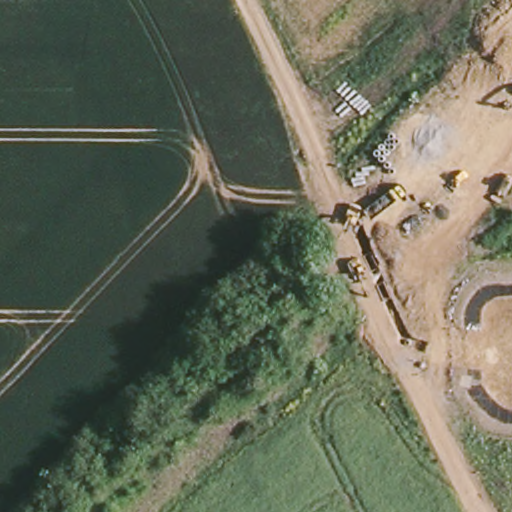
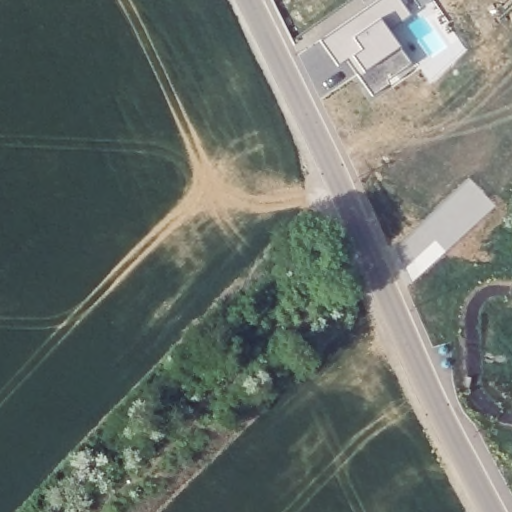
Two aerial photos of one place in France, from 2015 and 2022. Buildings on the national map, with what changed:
new [(400,0),(412,16),(390,32),(414,65),(372,95),(350,61),(339,68),(322,42),(382,0),(400,0)]

